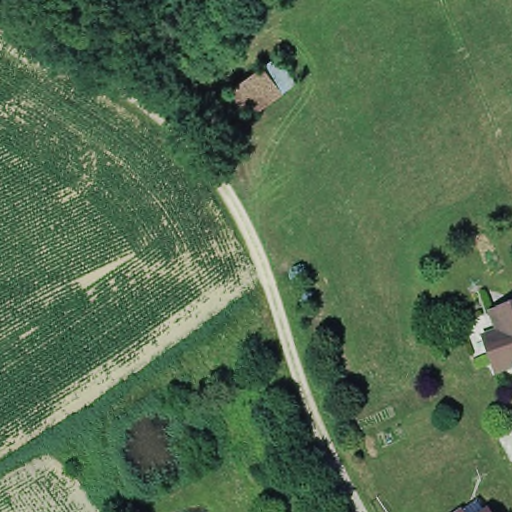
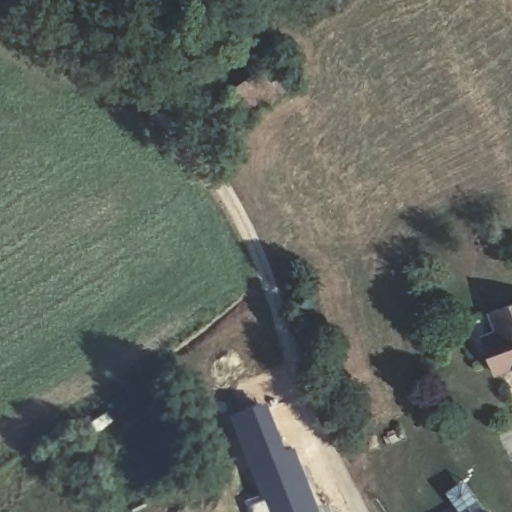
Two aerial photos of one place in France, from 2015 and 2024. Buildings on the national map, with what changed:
unchanged [(290,91),(257,115),(237,88),(270,64),(290,91)]
unchanged [(493,314),(512,307),(512,369),(498,374),(491,357),(485,340),(491,338),(500,334),(493,314)]
new [(229,418),(267,403),(288,449),(294,447),(321,512),(251,512),(247,504),(261,498),(229,418)]
unchanged [(457,509),(460,512),(453,512),(457,509)]
unchanged [(485,509),(488,512),(481,512),(485,509)]

